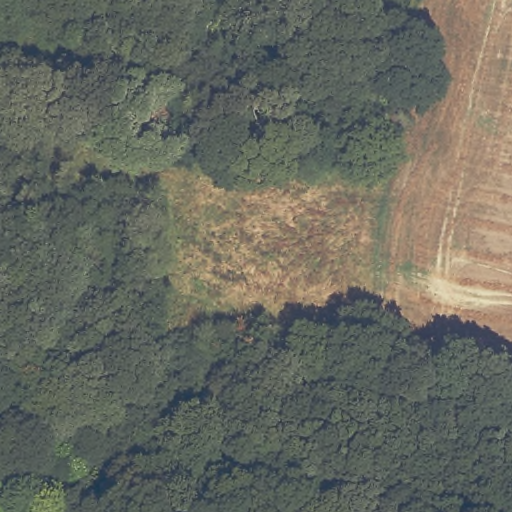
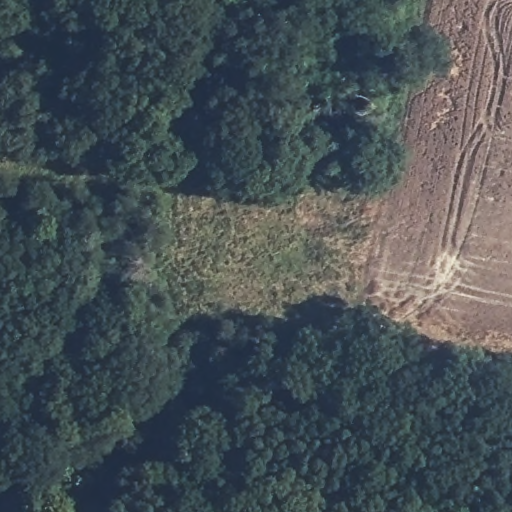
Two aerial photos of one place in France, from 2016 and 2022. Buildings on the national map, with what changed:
unchanged [(81,414),(111,417),(105,440),(77,436),(81,414)]

